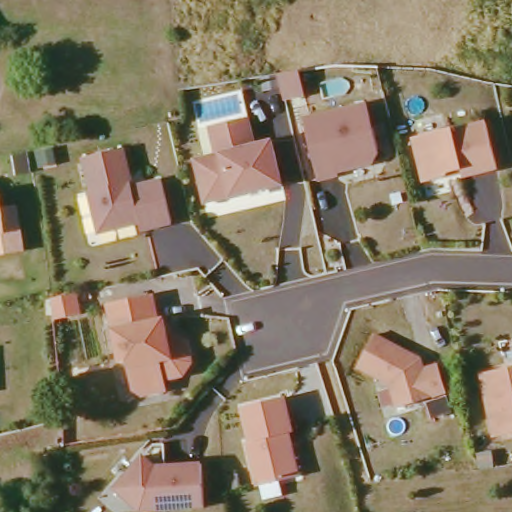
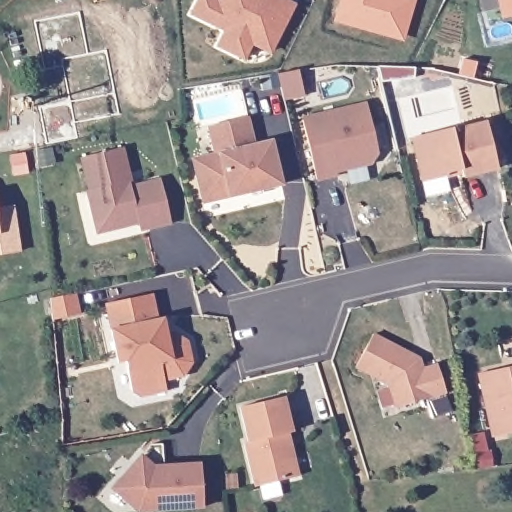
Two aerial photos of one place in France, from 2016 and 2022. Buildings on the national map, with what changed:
new [(219,1),(220,0),(299,0),(294,10),(273,53),(255,44),(195,15),(202,0),(216,0),(219,1)]
new [(406,36),(357,23),(356,26),(338,21),(344,0),(416,0),(406,36)]
new [(501,0),(512,0),(512,16),(505,18),(501,1),(501,0)]
new [(306,93),(285,97),(283,85),(268,87),(266,74),(282,72),(302,69),(306,93)]
unchanged [(306,118),(370,105),(380,152),(373,163),(340,170),(340,174),(319,178),(306,118)]
unchanged [(195,160),(202,158),(217,155),(210,127),(249,118),(255,146),(272,143),(282,186),(230,198),(205,203),(195,160)]
unchanged [(413,135),(452,126),(453,129),(486,120),(497,166),(448,178),(450,189),(427,194),(413,135)]
unchanged [(45,147),(48,163),(30,167),(27,152),(45,147)]
unchanged [(139,227),(113,233),(98,237),(95,223),(90,195),(92,194),(85,162),(123,153),(132,192),(162,186),(171,227),(151,232),(140,235),(139,227)]
unchanged [(5,204),(12,250),(0,252),(0,205),(5,204)]
unchanged [(67,291),(68,311),(45,317),(44,304),(43,296),(67,291)]
unchanged [(182,382),(163,385),(165,396),(140,401),(131,395),(125,366),(118,367),(107,308),(152,299),(161,341),(165,340),(172,339),(175,339),(187,346),(188,357),(192,368),(182,382)]
unchanged [(372,335),(408,354),(407,358),(422,367),(422,371),(436,367),(444,395),(395,409),(388,386),(356,369),(372,335)]
unchanged [(512,372),(512,437),(495,440),(482,377),(512,372)]
unchanged [(298,477),(257,487),(246,443),(250,442),(242,408),(285,399),(292,434),(288,435),(292,452),(298,477)]
unchanged [(444,400),(448,414),(428,420),(425,405),(444,400)]
unchanged [(152,471),(200,469),(201,512),(143,512),(143,505),(126,505),(112,493),(140,461),(152,471)]

